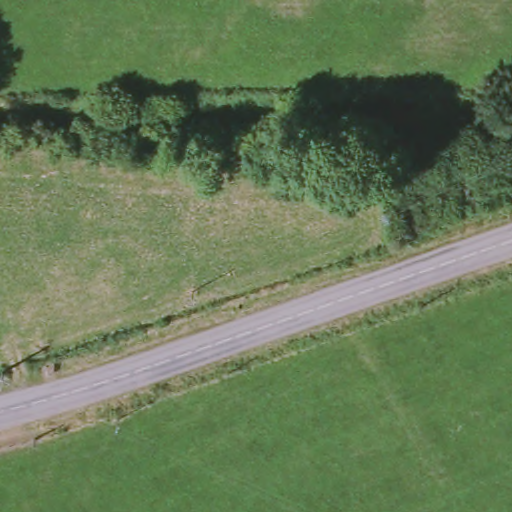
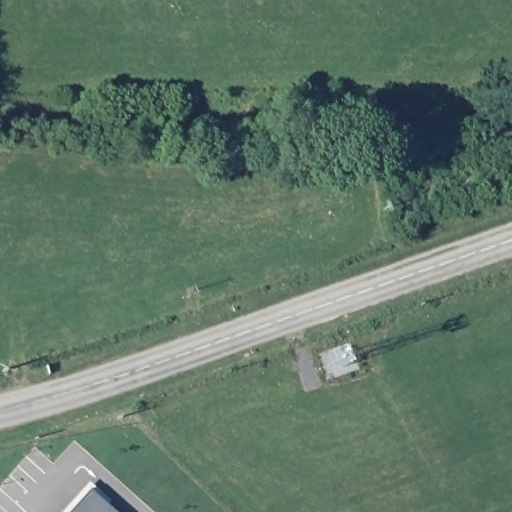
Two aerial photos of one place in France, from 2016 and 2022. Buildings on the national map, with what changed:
new [(118,512),(69,512),(90,487),(118,512)]

